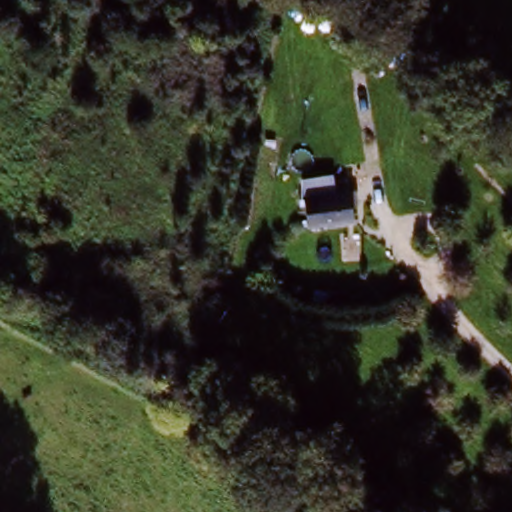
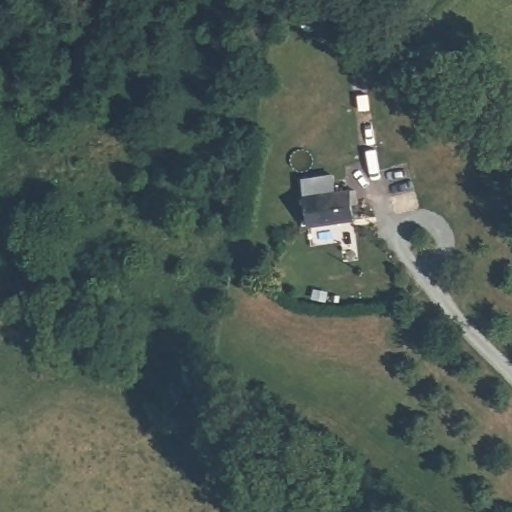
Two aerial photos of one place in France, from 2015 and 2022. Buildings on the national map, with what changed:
unchanged [(320,231),(317,203),(332,203),(332,191),(363,190),(365,220),(333,221),(335,230),(320,231)]

